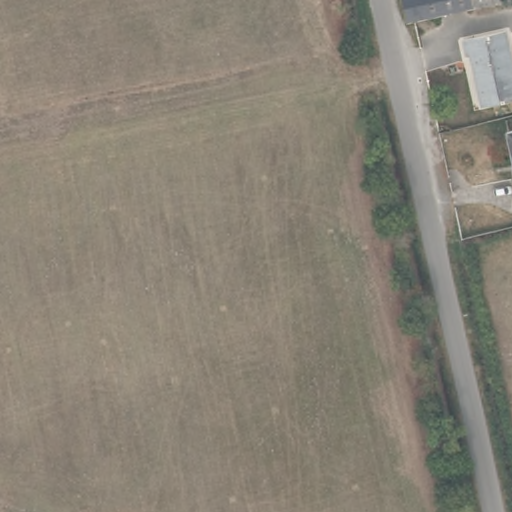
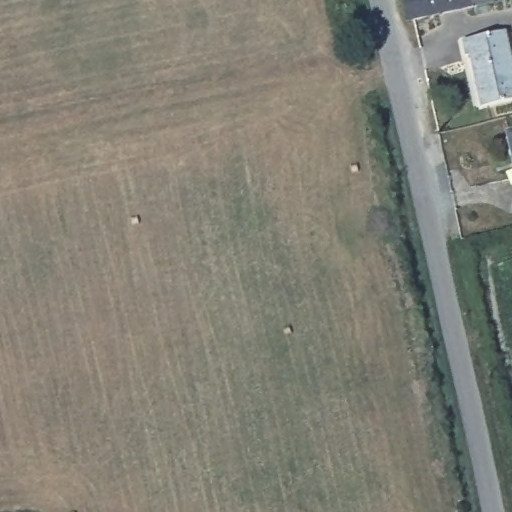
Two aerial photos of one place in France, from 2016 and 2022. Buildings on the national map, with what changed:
unchanged [(477,5),(431,16),(412,20),(407,0),(476,0),(477,5)]
unchanged [(477,5),(476,0),(496,0),(477,5)]
unchanged [(457,67),(452,47),(495,37),(503,72),(512,71),(512,104),(477,112),(466,66),(457,67)]
unchanged [(512,162),(505,135),(512,134),(512,162)]

